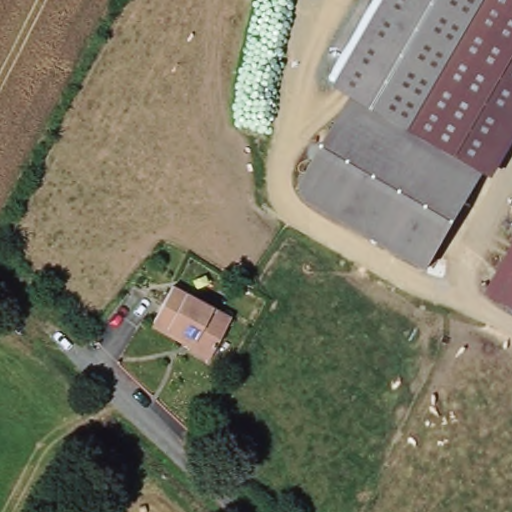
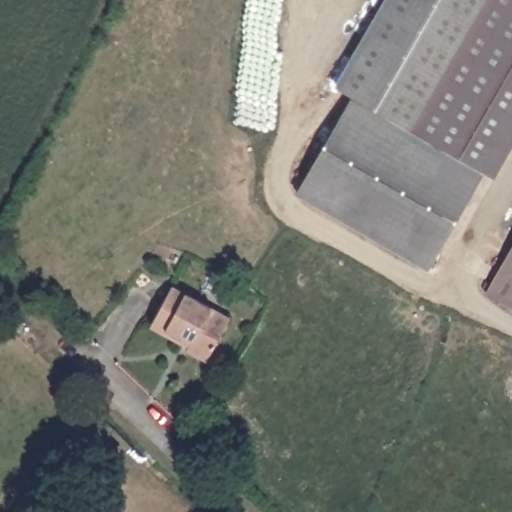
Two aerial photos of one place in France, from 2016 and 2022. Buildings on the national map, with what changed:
unchanged [(376,10),(382,0),(471,0),(425,86),(500,132),(425,267),(319,206),(405,39),(376,10)]
unchanged [(425,86),(471,0),(512,0),(512,111),(500,132),(425,86)]
unchanged [(294,192),(348,97),(332,88),(376,10),(405,39),(319,206),(294,192)]
unchanged [(512,255),(512,308),(490,295),(512,255)]
unchanged [(230,318),(206,362),(186,351),(189,344),(151,323),(171,286),(230,318)]

